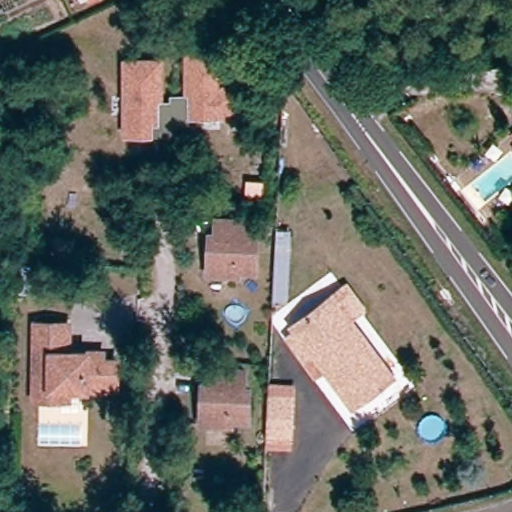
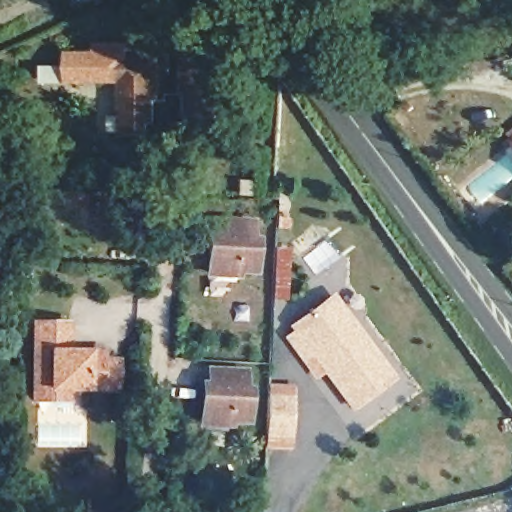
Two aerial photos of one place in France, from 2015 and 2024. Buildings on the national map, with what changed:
unchanged [(93,0),(81,5),(78,0),(93,0)]
new [(123,57),(123,85),(43,83),(42,66),(67,67),(67,51),(95,52),(96,44),(131,44),(132,57),(123,57)]
unchanged [(123,57),(161,56),(163,100),(167,101),(168,93),(185,87),(185,51),(226,51),(227,85),(238,91),(239,116),(204,117),(204,122),(179,121),(178,129),(168,129),(167,135),(123,132),(123,57)]
unchanged [(506,144),(512,139),(512,150),(506,144)]
unchanged [(290,220),(287,306),(269,307),(270,217),(290,220)]
unchanged [(206,277),(206,243),(214,242),(213,222),(245,224),(246,245),(253,247),(251,270),(234,270),(234,277),(206,277)]
unchanged [(331,300),(397,385),(355,416),(316,365),(304,373),(284,346),(295,337),(291,331),(331,300)]
unchanged [(33,393),(32,317),(43,318),(63,318),(64,331),(64,347),(91,348),(100,348),(100,356),(114,356),(115,385),(66,383),(66,394),(50,393),(33,393)]
unchanged [(202,420),(201,380),(209,380),(208,361),(239,362),(239,383),(245,383),(246,415),(233,415),(233,422),(202,420)]
unchanged [(265,439),(265,395),(265,380),(290,381),(290,440),(265,439)]

